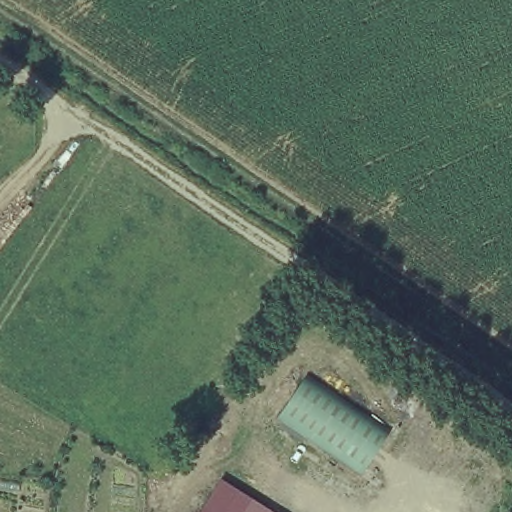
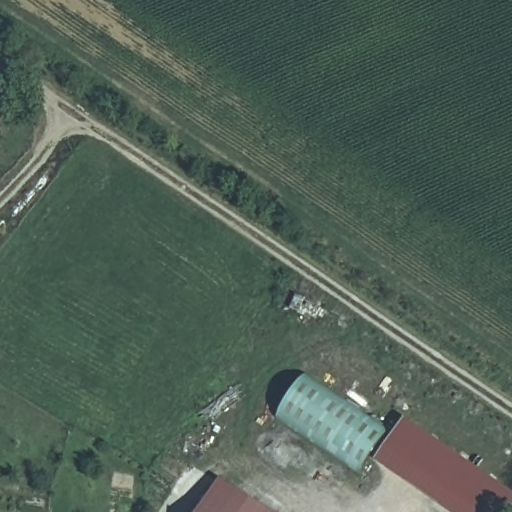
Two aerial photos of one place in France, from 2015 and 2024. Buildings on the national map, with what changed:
unchanged [(280,418),(306,377),(392,434),(365,473),(280,418)]
new [(512,493),(512,507),(508,512),(446,512),(373,460),(392,434),(402,419),(512,493)]
demolished [(202,512),(222,479),(274,512),(202,512)]
new [(268,512),(211,512),(202,506),(215,486),(218,481),(268,512)]
new [(211,512),(199,512),(202,506),(211,512)]

